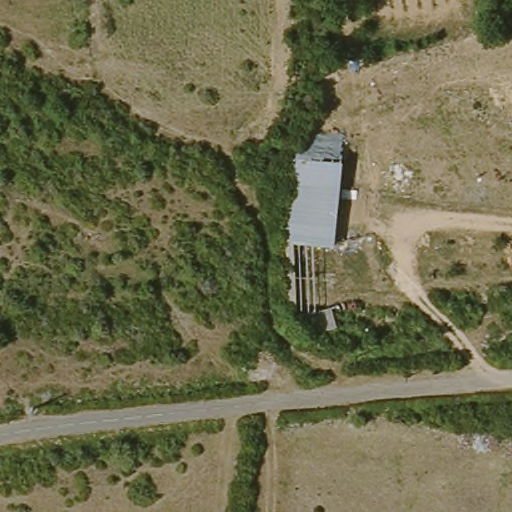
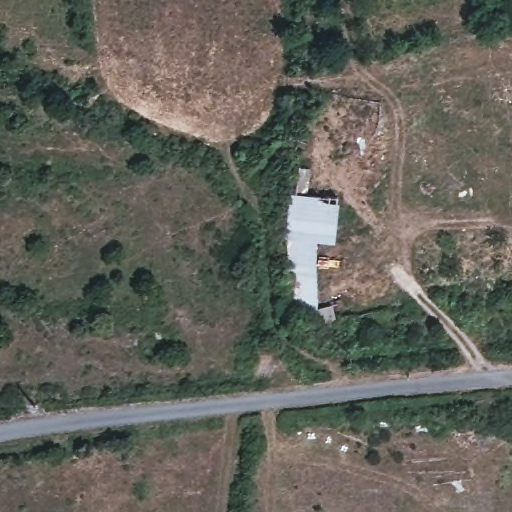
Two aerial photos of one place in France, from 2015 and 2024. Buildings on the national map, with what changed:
unchanged [(294,156),(347,161),(334,239),(318,240),(289,240),(294,156)]
unchanged [(342,326),(309,337),(303,319),(288,318),(289,240),(318,240),(322,310),(338,305),(342,326)]

